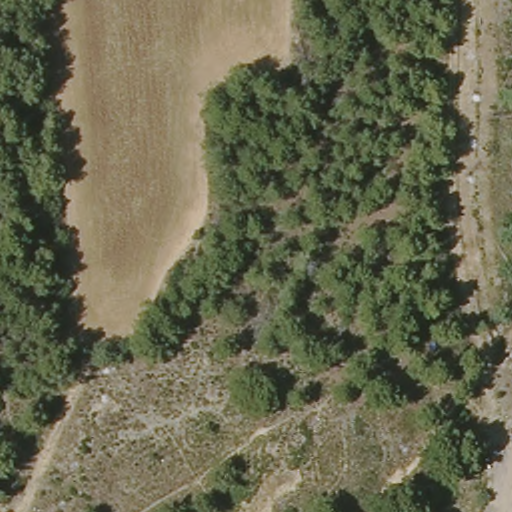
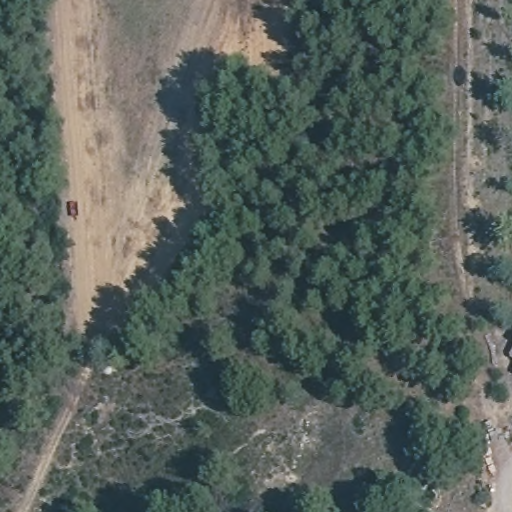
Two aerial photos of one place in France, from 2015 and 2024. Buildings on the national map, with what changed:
unchanged [(505,367),(512,357),(512,372),(505,367)]

